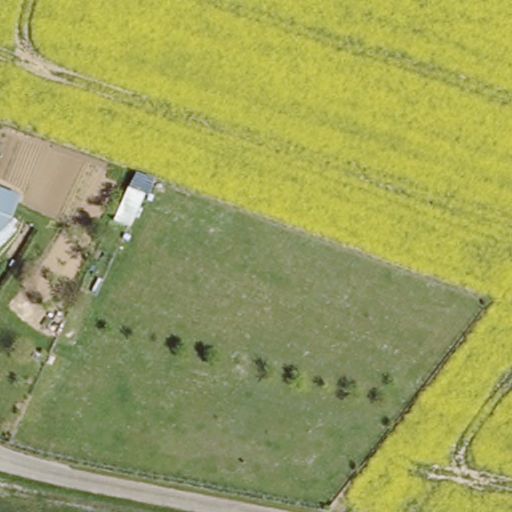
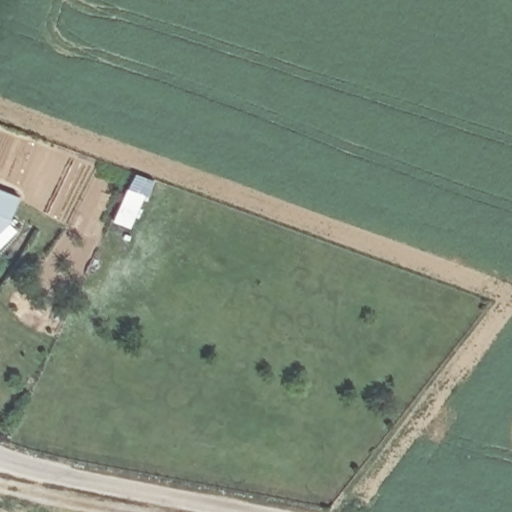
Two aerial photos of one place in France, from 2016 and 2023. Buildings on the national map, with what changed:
unchanged [(135,173),(154,180),(147,196),(145,195),(130,228),(113,221),(135,173)]
unchanged [(12,218),(9,222),(17,231),(0,248),(0,189),(19,196),(12,218)]

